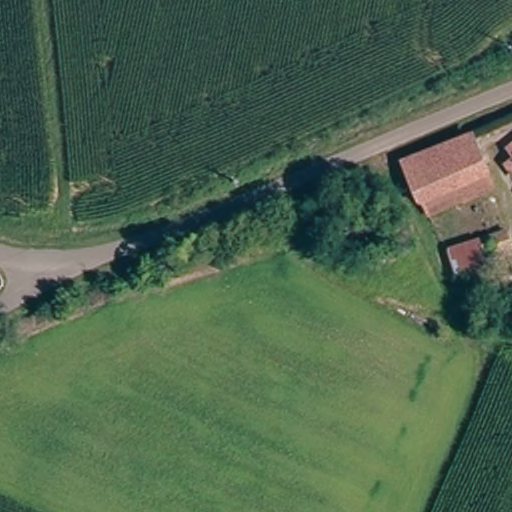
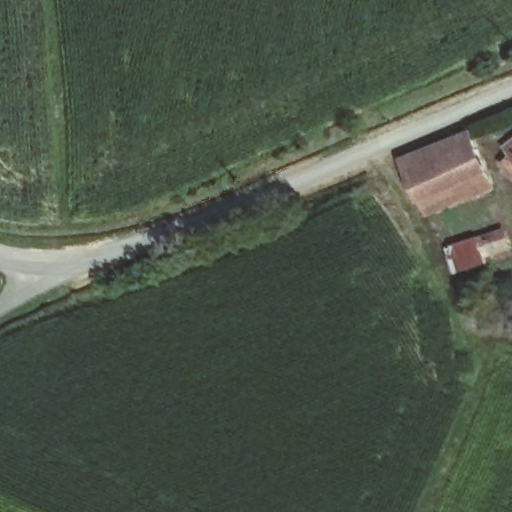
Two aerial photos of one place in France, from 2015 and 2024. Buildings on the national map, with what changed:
unchanged [(460,200),(420,215),(397,161),(467,131),(482,170),(488,190),(460,200)]
unchanged [(510,143),(512,142),(512,147),(510,143)]
unchanged [(455,279),(452,270),(447,248),(502,227),(512,256),(512,258),(455,279)]

